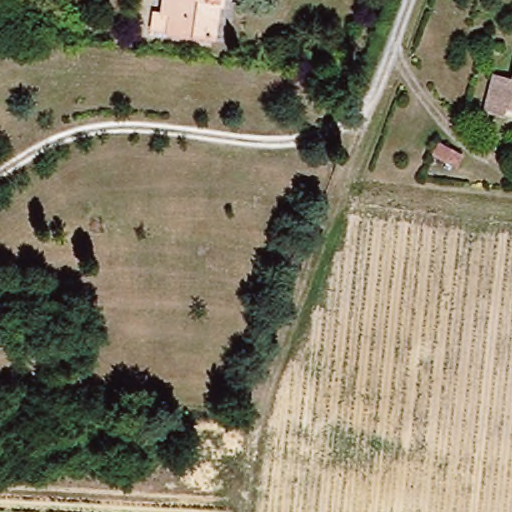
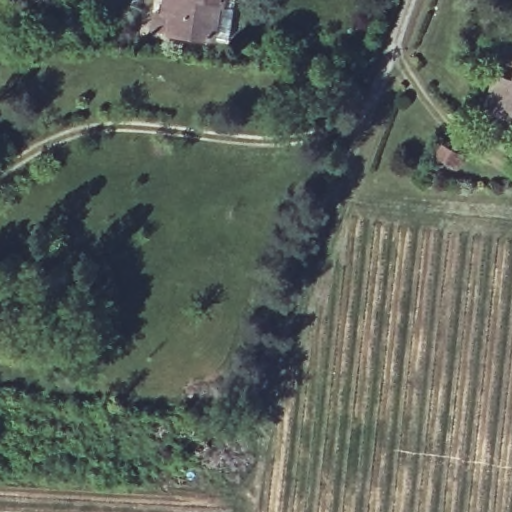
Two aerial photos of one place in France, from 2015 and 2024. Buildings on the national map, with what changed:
unchanged [(220,41),(156,33),(160,11),(170,13),(172,0),(226,0),(220,41)]
unchanged [(509,113),(507,121),(494,119),(484,115),(496,77),(504,78),(512,80),(512,114),(509,113)]
unchanged [(443,150),(475,158),(469,178),(438,169),(443,150)]

